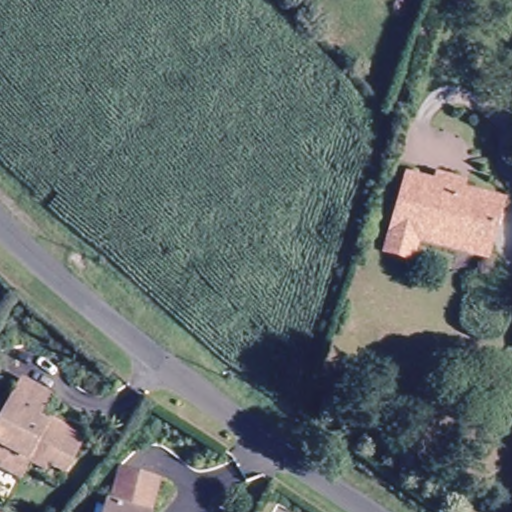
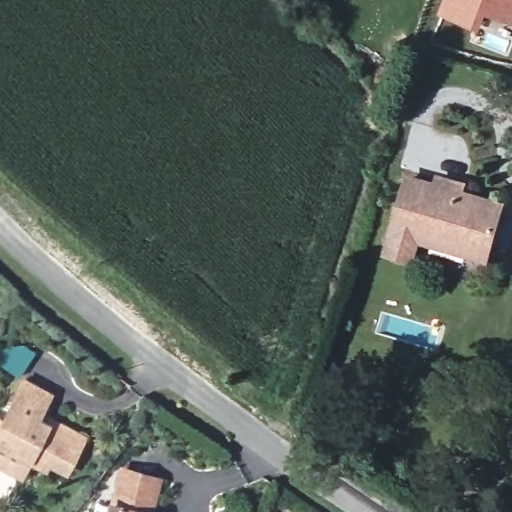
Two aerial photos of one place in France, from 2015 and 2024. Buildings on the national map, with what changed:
new [(480,32),(440,17),(446,0),(512,0),(512,25),(487,15),(480,32)]
unchanged [(412,264),(389,255),(412,185),(437,193),(440,183),(465,190),(462,200),(500,211),(488,251),(484,265),(418,244),(412,264)]
unchanged [(0,472),(0,415),(17,380),(37,388),(25,417),(39,424),(42,418),(77,435),(65,467),(46,459),(42,470),(22,460),(13,478),(0,472)]
unchanged [(158,478),(148,512),(106,512),(109,502),(112,503),(122,467),(158,478)]

